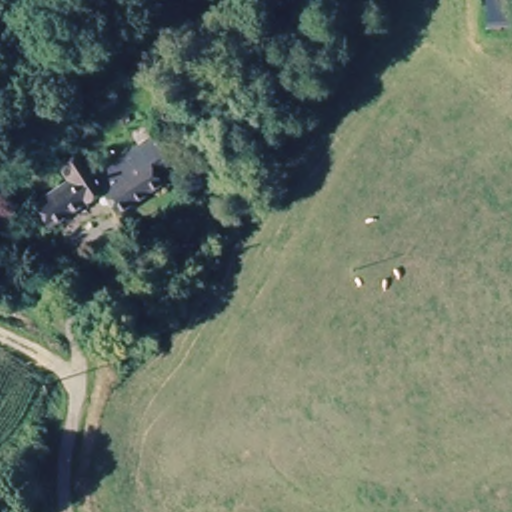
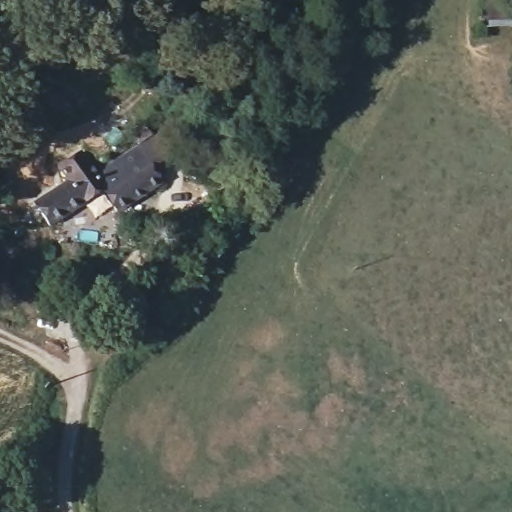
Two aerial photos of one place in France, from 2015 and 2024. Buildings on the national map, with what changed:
unchanged [(70,184),(62,170),(86,158),(93,171),(155,139),(166,159),(150,168),(159,186),(111,212),(102,195),(47,224),(35,201),(70,184)]

